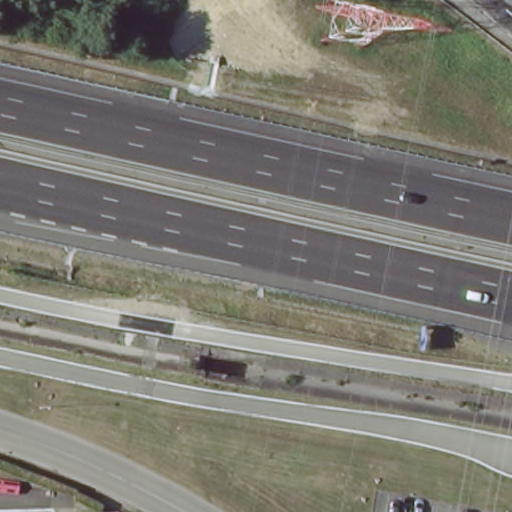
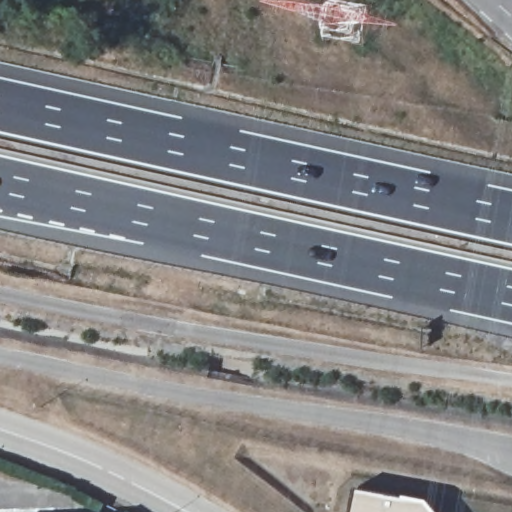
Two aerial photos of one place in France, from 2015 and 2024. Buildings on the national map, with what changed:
new [(402,498),(403,497),(427,502),(434,512),(349,512),(353,491),(402,498)]

